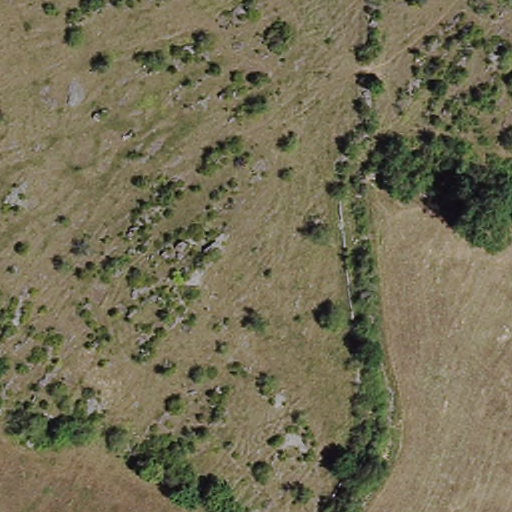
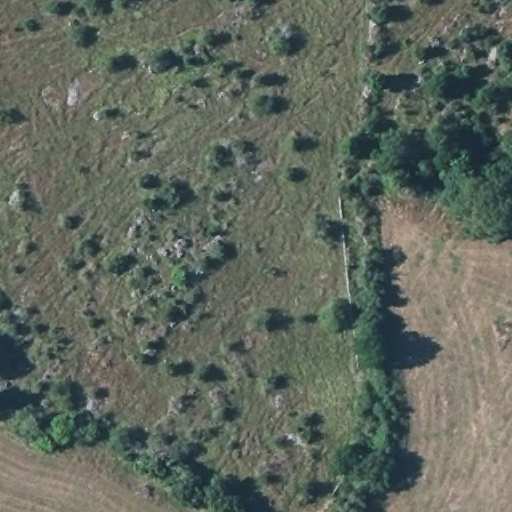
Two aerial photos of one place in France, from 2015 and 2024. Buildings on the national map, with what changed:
[]

